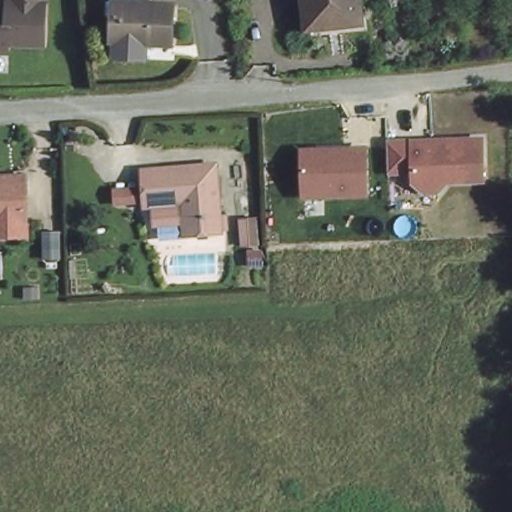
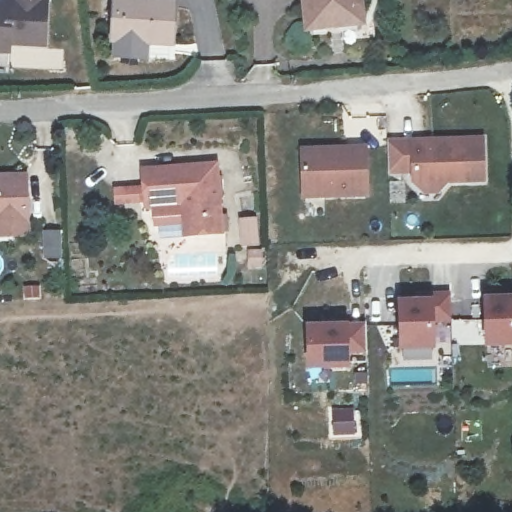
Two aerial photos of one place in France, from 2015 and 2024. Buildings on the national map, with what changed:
unchanged [(18,0),(52,0),(50,45),(11,47),(11,54),(0,54),(0,2),(13,0),(18,0)]
unchanged [(309,27),(308,0),(363,0),(364,12),(364,22),(334,25),(309,27)]
unchanged [(120,39),(122,1),(175,3),(172,42),(120,39)]
unchanged [(486,136),(489,182),(451,183),(442,193),(427,195),(414,186),(413,177),(390,177),(389,138),(486,136)]
unchanged [(369,197),(302,198),(300,146),(368,145),(369,197)]
unchanged [(196,230),(192,207),(161,208),(157,170),(227,164),(231,227),(196,230)]
unchanged [(0,182),(24,181),(25,227),(23,241),(0,241),(0,182)]
new [(416,292),(428,291),(449,290),(449,315),(431,316),(432,343),(401,344),(398,299),(416,298),(416,292)]
new [(509,298),(508,292),(512,292),(512,317),(511,317),(512,343),(480,345),(478,300),(509,298)]
new [(360,319),(361,344),(342,345),(343,360),(304,362),(302,322),(360,319)]

